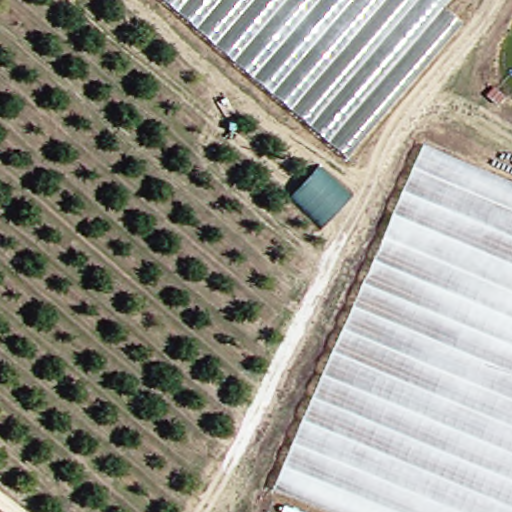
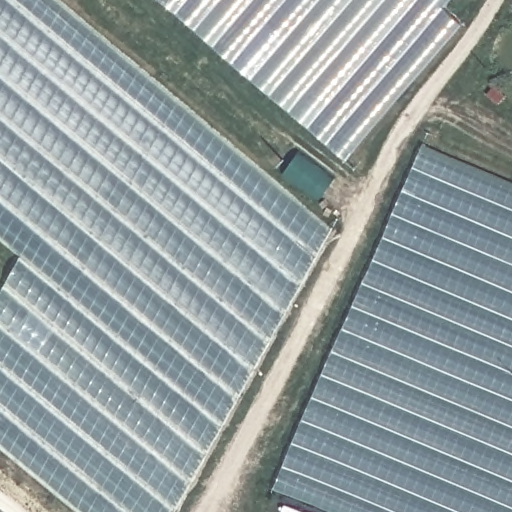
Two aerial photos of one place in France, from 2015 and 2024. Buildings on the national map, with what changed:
new [(0,293),(20,256),(0,238),(0,0),(64,0),(336,228),(175,512),(80,512),(0,446),(0,293)]
unchanged [(436,6),(452,22),(344,149),(172,0),(441,0),(436,6)]
new [(302,148),(338,174),(319,200),(284,173),(302,148)]
unchanged [(338,512),(285,490),(426,161),(512,195),(512,512),(338,512)]

